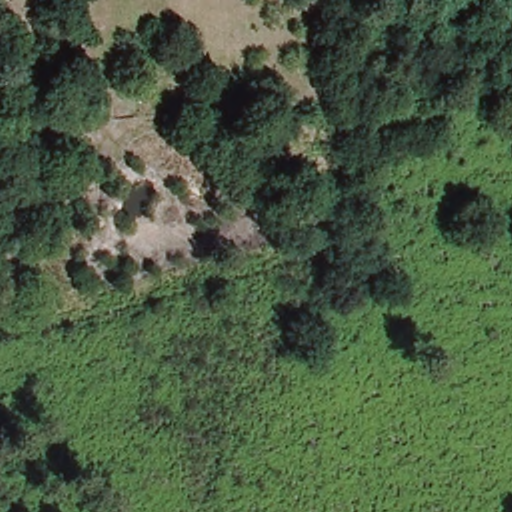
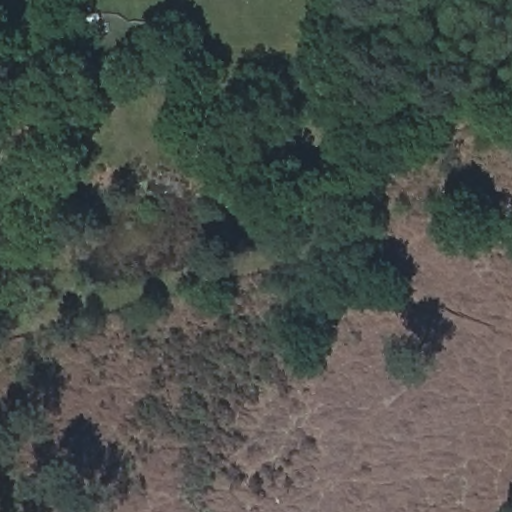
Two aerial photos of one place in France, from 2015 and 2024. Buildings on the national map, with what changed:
[]

